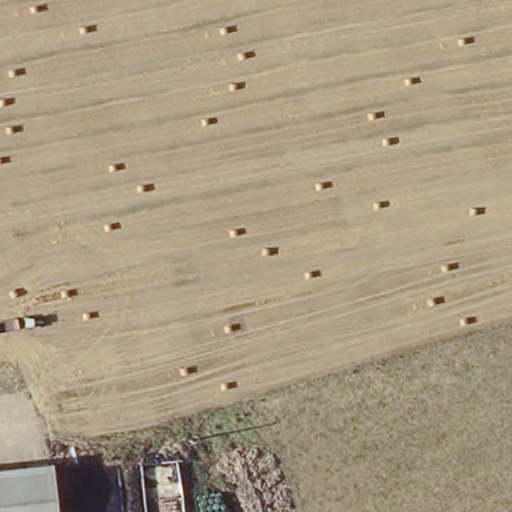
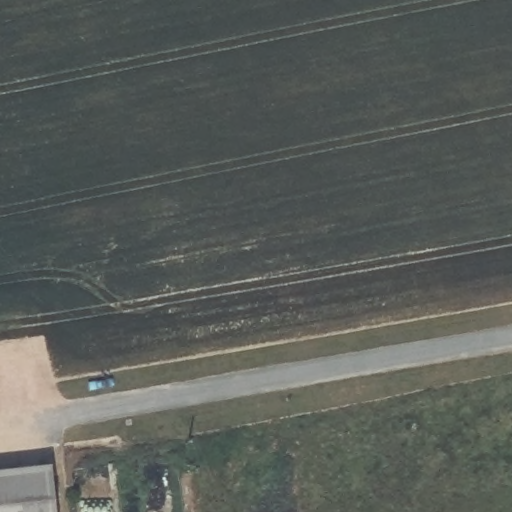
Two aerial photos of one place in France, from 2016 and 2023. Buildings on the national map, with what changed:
unchanged [(55,462),(60,512),(0,512),(0,468),(55,462)]

